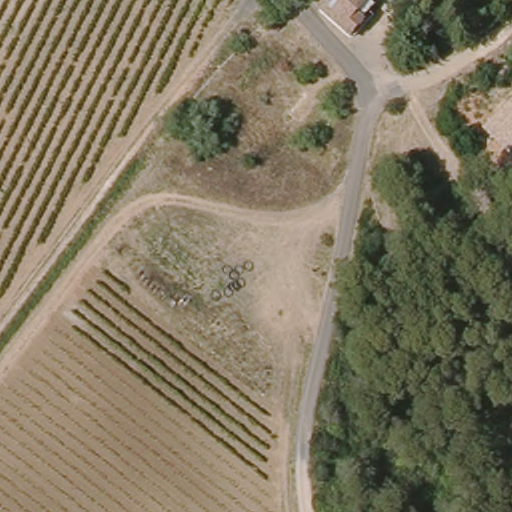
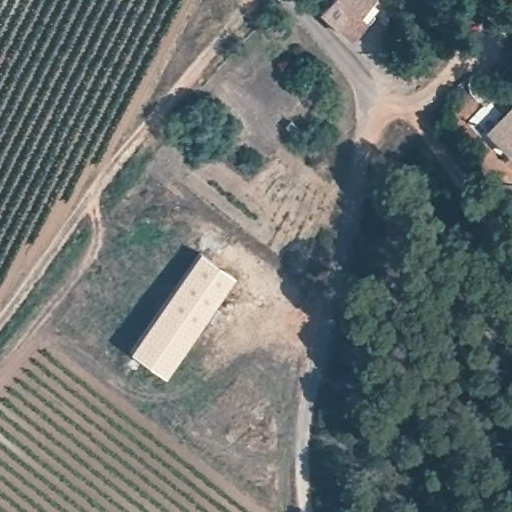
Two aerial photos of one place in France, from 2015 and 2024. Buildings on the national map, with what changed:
unchanged [(324,5),(328,0),(369,0),(343,27),(324,5)]
unchanged [(512,102),(512,154),(509,156),(485,130),(512,102)]
new [(236,278),(166,377),(130,351),(200,252),(236,278)]

